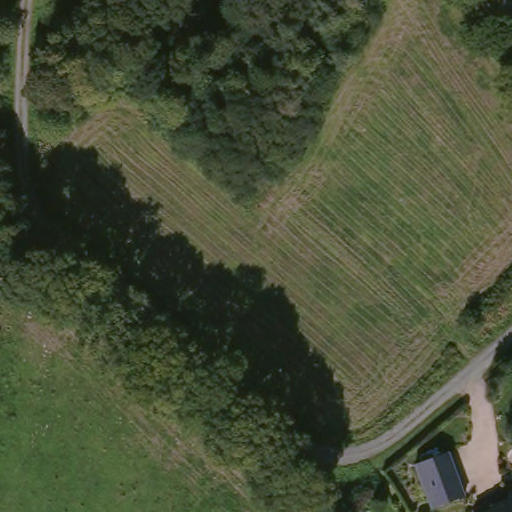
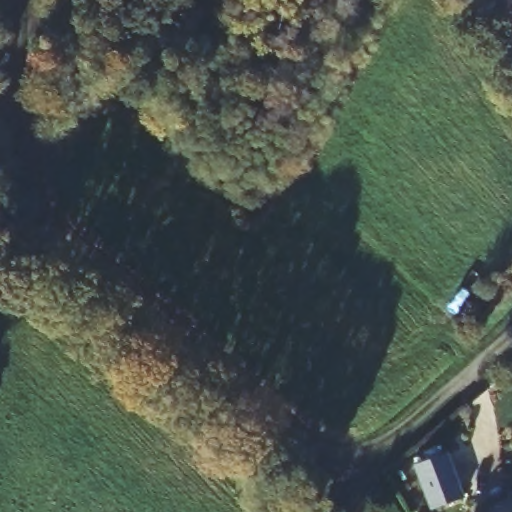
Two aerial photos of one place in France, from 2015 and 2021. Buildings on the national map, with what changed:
unchanged [(419,466),(451,451),(471,494),(439,509),(419,466)]
unchanged [(503,511),(501,508),(512,503),(512,512),(500,512),(503,511)]

